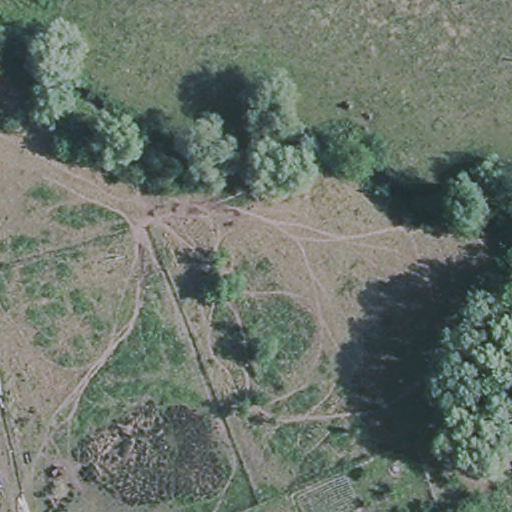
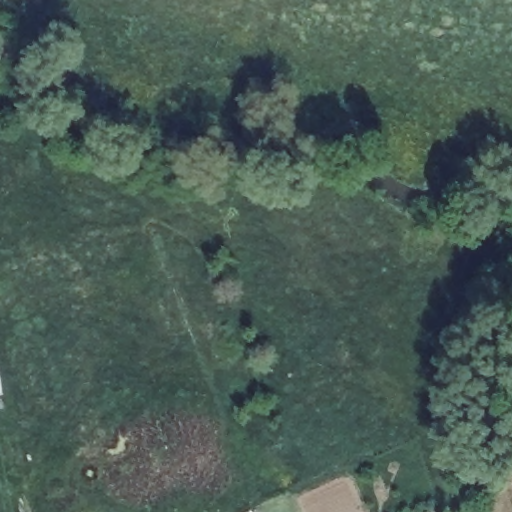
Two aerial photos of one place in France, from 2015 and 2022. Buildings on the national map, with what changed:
[]

